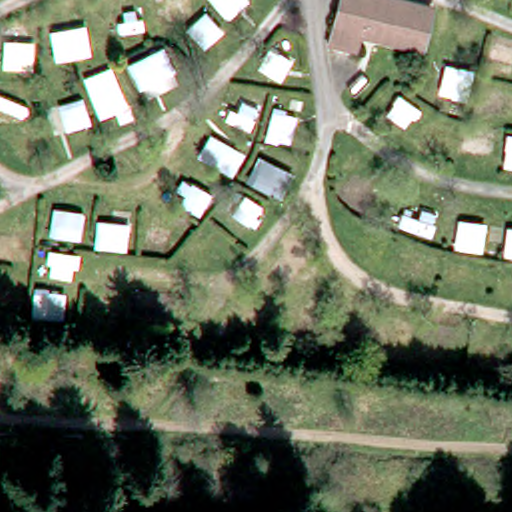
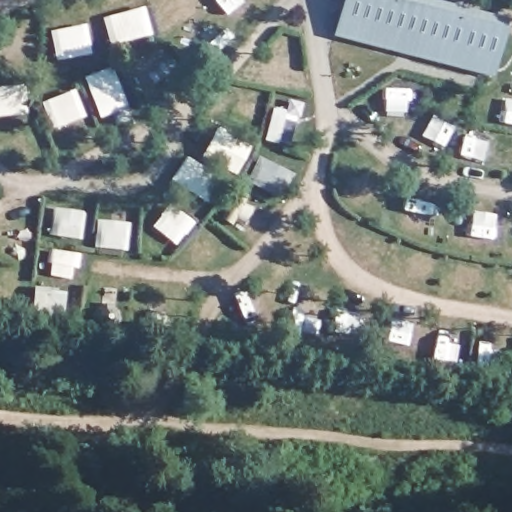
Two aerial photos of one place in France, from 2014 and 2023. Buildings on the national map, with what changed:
demolished [(375,0),(423,12),(413,50),(326,27),(333,0),(375,0)]
new [(337,31),(345,0),(425,0),(509,21),(496,72),(337,31)]

